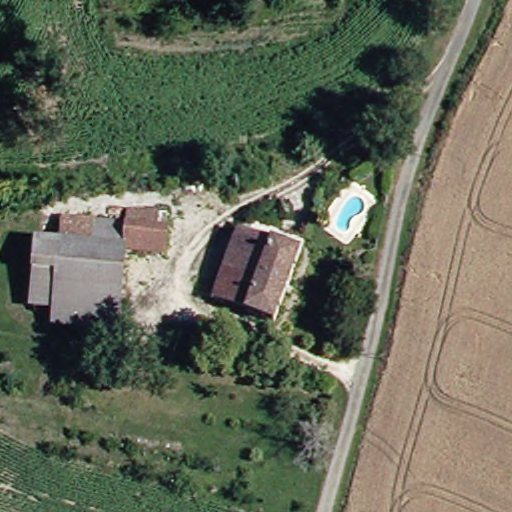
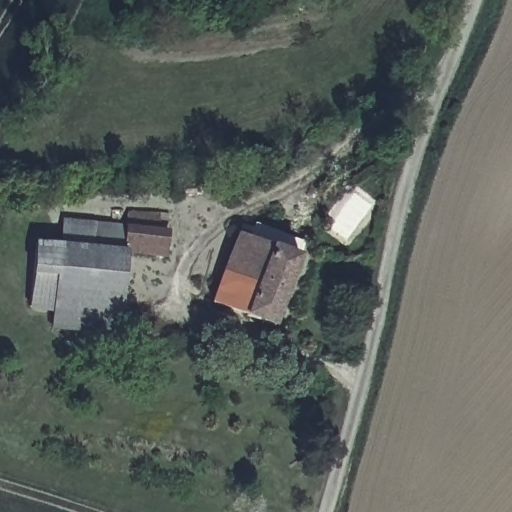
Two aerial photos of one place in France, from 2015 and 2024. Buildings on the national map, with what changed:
unchanged [(25,306),(31,244),(55,247),(57,220),(120,227),(121,210),(157,214),(155,231),(162,231),(160,259),(124,259),(115,337),(102,336),(101,345),(81,343),(82,334),(48,330),(50,309),(25,306)]
unchanged [(237,234),(298,255),(272,326),(211,303),(237,234)]

